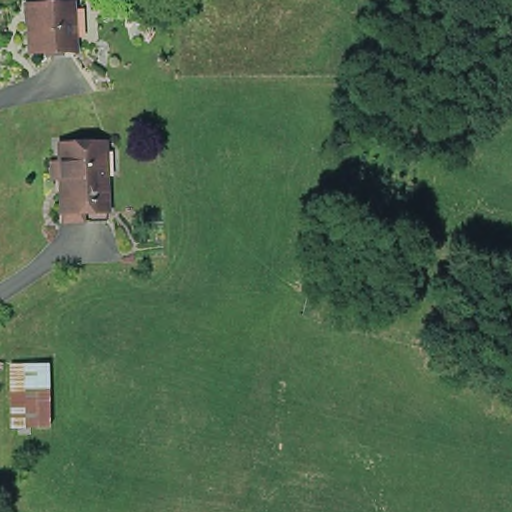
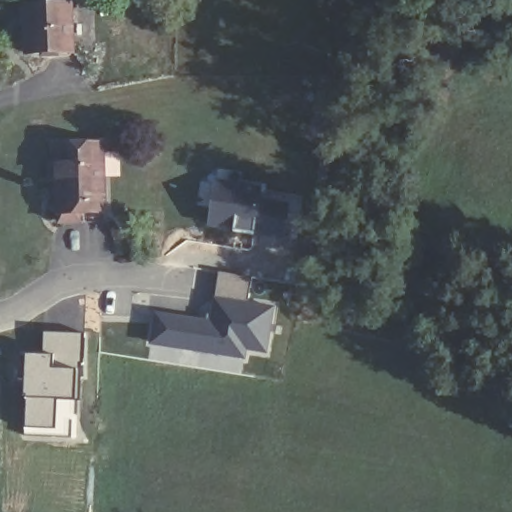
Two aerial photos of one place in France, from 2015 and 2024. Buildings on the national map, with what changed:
unchanged [(22,50),(21,1),(66,0),(67,42),(67,49),(45,50),(22,50)]
unchanged [(104,137),(105,215),(60,215),(60,172),(47,172),(47,157),(59,156),(59,138),(104,137)]
new [(212,177),(264,183),(263,195),(292,199),(285,241),(206,226),(212,177)]
new [(212,320),(217,272),(249,276),(247,301),(273,305),(267,355),(245,349),(242,360),(149,342),(152,310),(212,320)]
new [(25,355),(41,355),(43,332),(83,335),(79,403),(72,403),(72,405),(63,404),(61,424),(69,425),(68,433),(24,431),(25,355)]
demolished [(43,427),(7,427),(7,364),(44,365),(43,427)]

